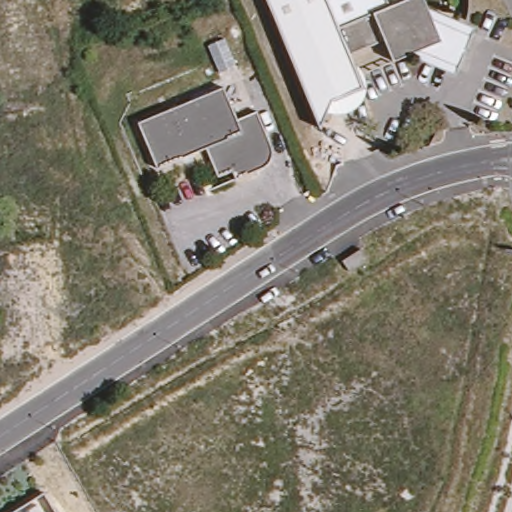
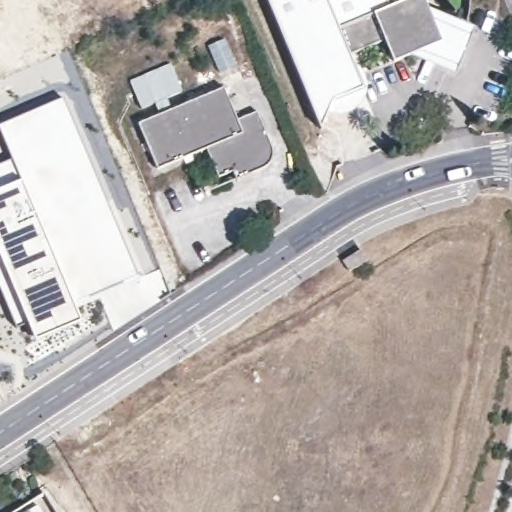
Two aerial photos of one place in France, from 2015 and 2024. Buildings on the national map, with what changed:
unchanged [(469,35),(452,74),(416,54),(393,63),(385,42),(348,56),(363,89),(332,101),(320,130),(268,0),(425,0),(431,15),(469,35)]
unchanged [(232,173),(217,179),(206,148),(159,165),(142,119),(174,107),(172,101),(181,98),(183,104),(228,86),(241,119),(259,111),(274,148),(274,154),(273,159),(271,163),(267,168),(264,169),(251,175),(235,181),(232,173)]
new [(11,158),(0,132),(0,123),(62,96),(106,193),(139,277),(75,309),(81,321),(33,342),(24,323),(15,327),(0,291),(0,162),(11,158)]
unchanged [(368,260),(350,272),(343,261),(361,249),(368,260)]
unchanged [(45,496),(55,512),(19,512),(45,496)]

